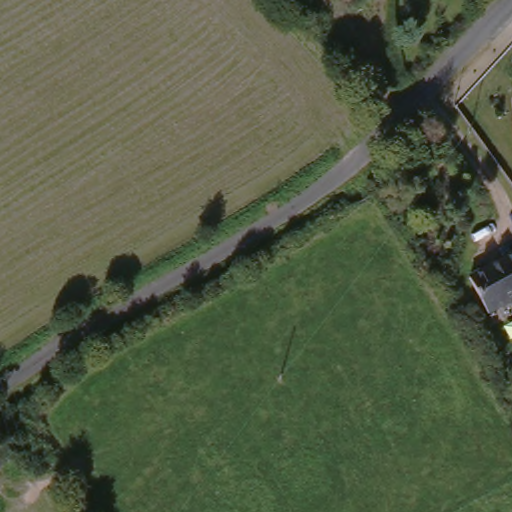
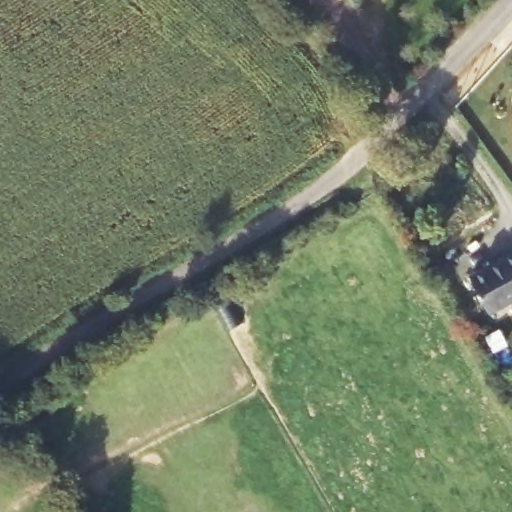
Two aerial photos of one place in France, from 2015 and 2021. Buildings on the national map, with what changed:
unchanged [(465,288),(512,263),(512,310),(484,325),(465,288)]

